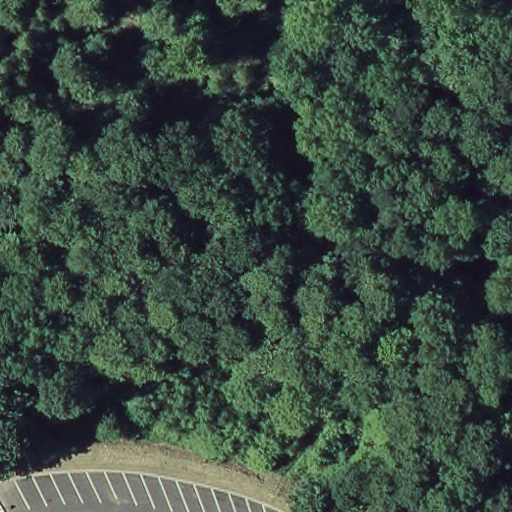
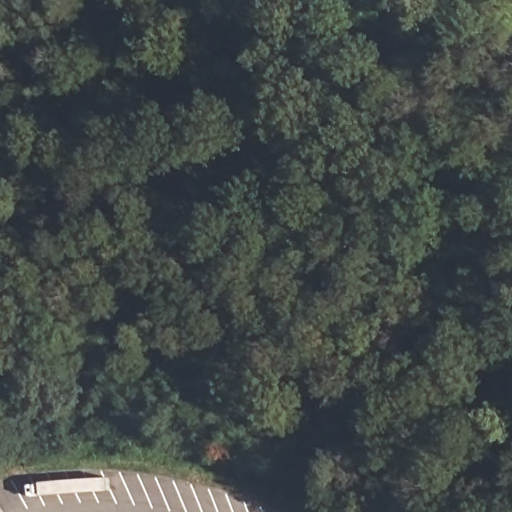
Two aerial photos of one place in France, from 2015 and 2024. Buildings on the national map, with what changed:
[]

